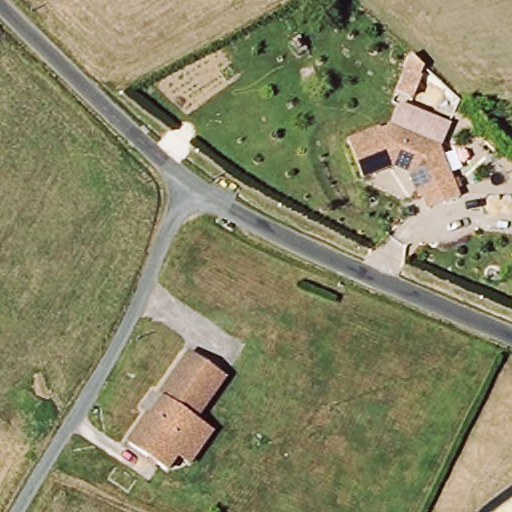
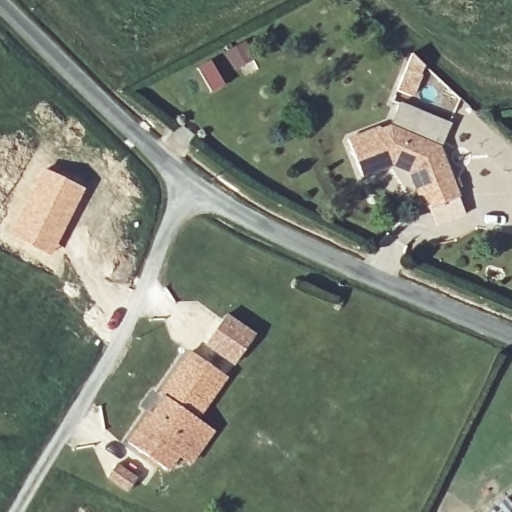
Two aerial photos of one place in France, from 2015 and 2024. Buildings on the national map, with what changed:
unchanged [(392,121),(401,103),(450,124),(442,144),(392,121)]
unchanged [(392,121),(444,145),(463,195),(432,207),(427,197),(423,197),(412,169),(396,164),(366,176),(350,137),(392,121)]
new [(42,168),(85,188),(51,255),(8,233),(42,168)]
new [(204,345),(227,313),(256,333),(233,366),(204,345)]
unchanged [(191,460),(179,451),(168,466),(131,438),(153,409),(155,411),(168,394),(163,390),(168,383),(193,349),(227,374),(198,414),(203,418),(215,427),(191,460)]

